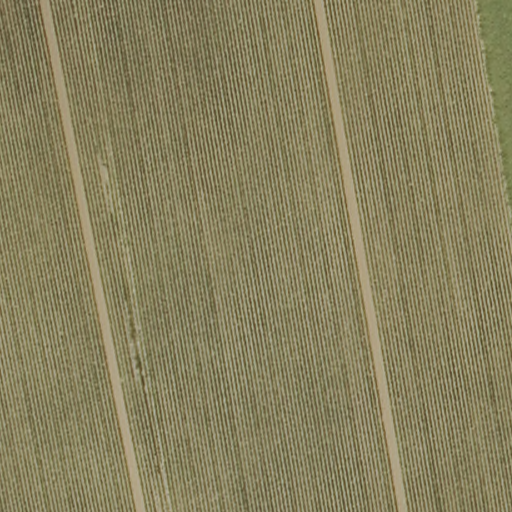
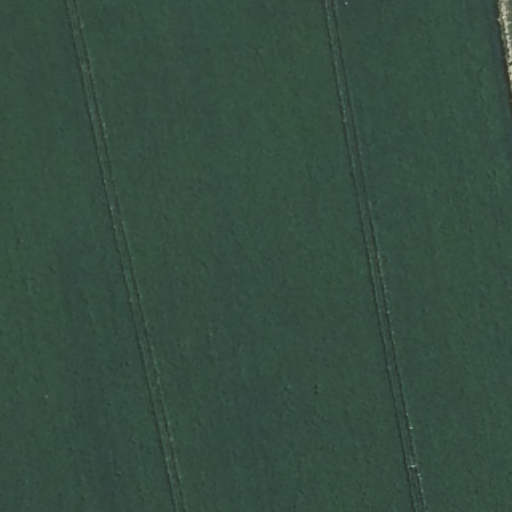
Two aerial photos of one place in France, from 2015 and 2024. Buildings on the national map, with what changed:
[]

